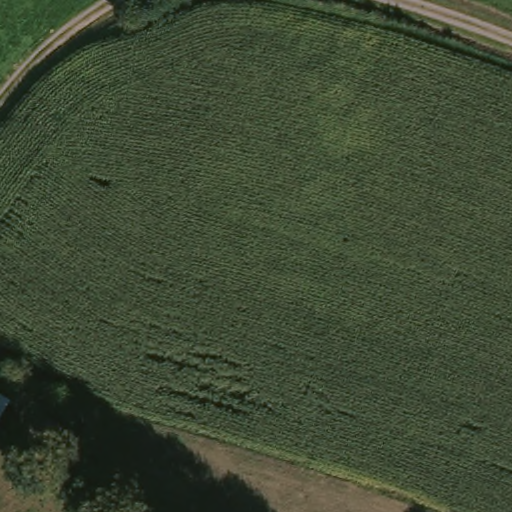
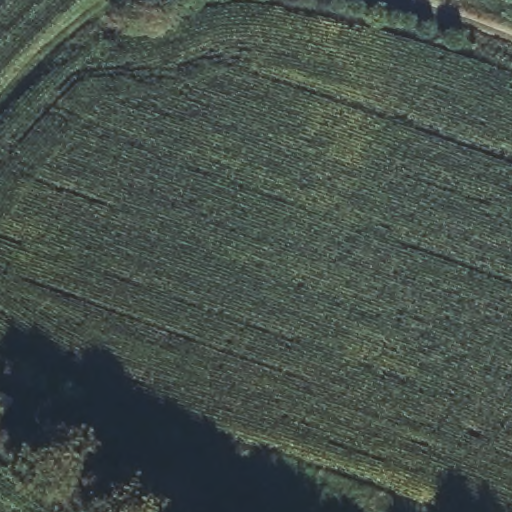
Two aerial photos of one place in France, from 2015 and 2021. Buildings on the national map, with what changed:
unchanged [(22,398),(6,432),(0,429),(0,388),(22,398)]

